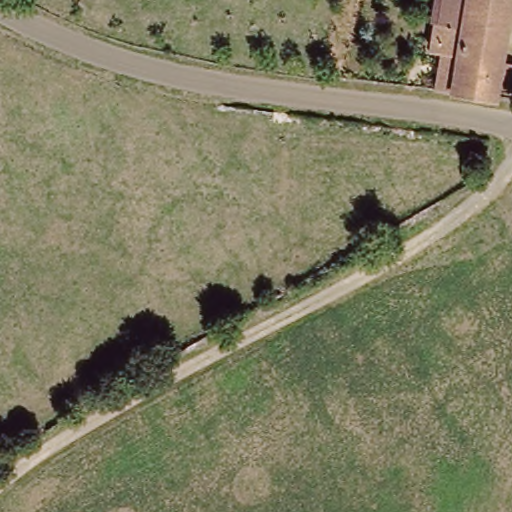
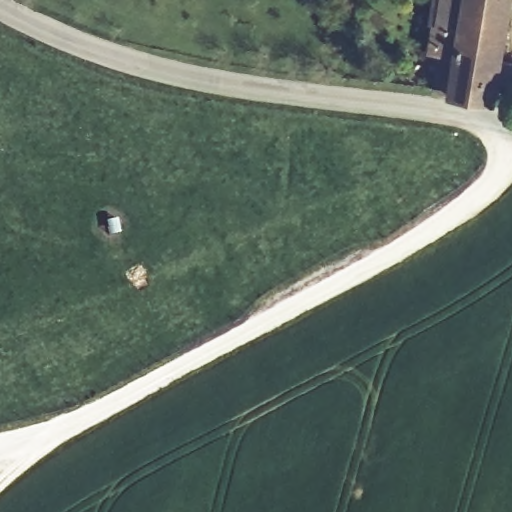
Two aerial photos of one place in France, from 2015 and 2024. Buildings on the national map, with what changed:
unchanged [(433,52),(437,24),(439,24),(441,0),(510,0),(502,62),(512,63),(512,76),(512,81),(500,79),(498,99),(458,94),(440,92),(444,54),(433,52)]

